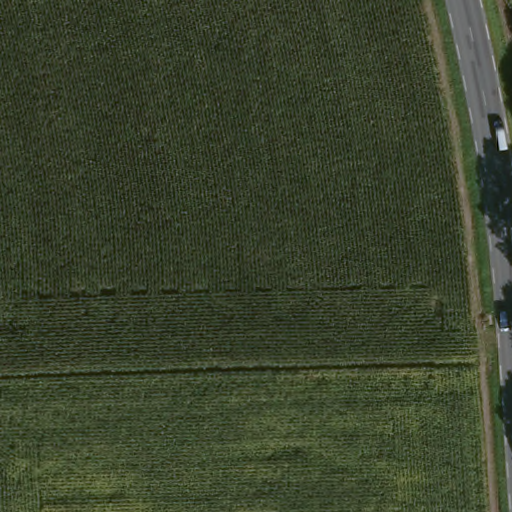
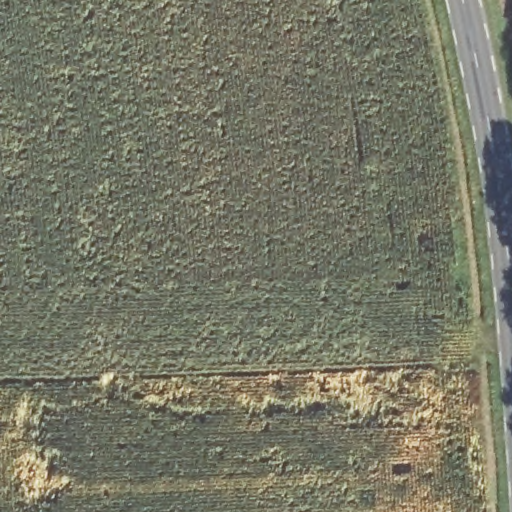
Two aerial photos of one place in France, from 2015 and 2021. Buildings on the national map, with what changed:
[]

